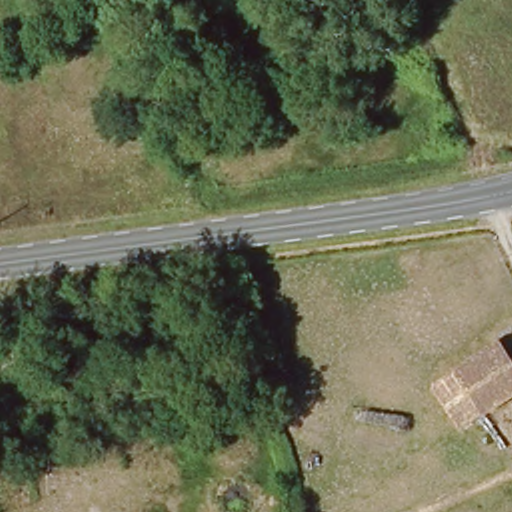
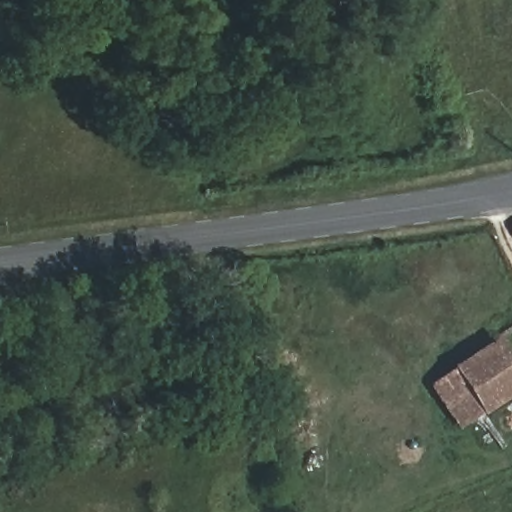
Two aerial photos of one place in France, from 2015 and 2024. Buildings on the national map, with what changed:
unchanged [(500,339),(512,358),(512,399),(462,429),(431,387),(500,339)]

